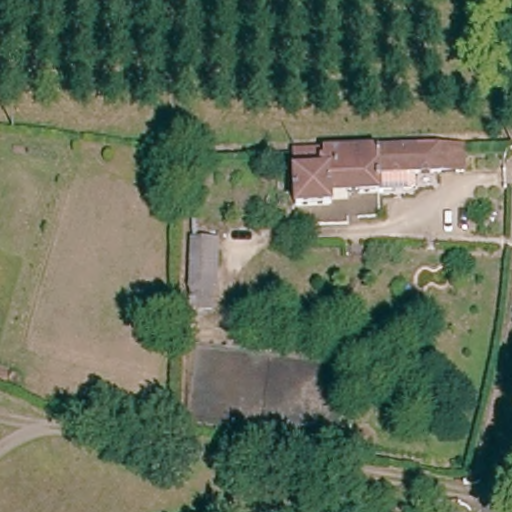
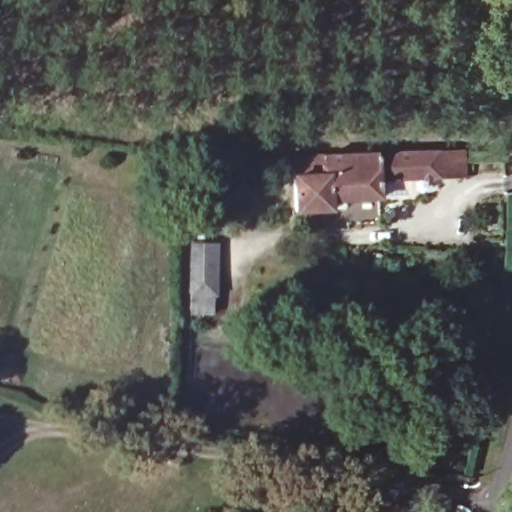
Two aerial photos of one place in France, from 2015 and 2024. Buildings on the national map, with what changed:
unchanged [(458,151),(459,177),(408,179),(409,190),(409,192),(408,192),(407,193),(406,193),(405,194),(374,195),(374,198),(325,200),(325,210),(291,212),(289,157),(458,151)]
unchanged [(212,298),(212,314),(190,313),(192,242),(214,243),(212,298)]

